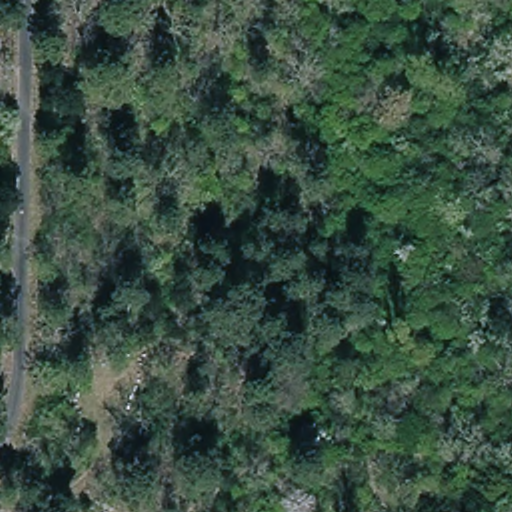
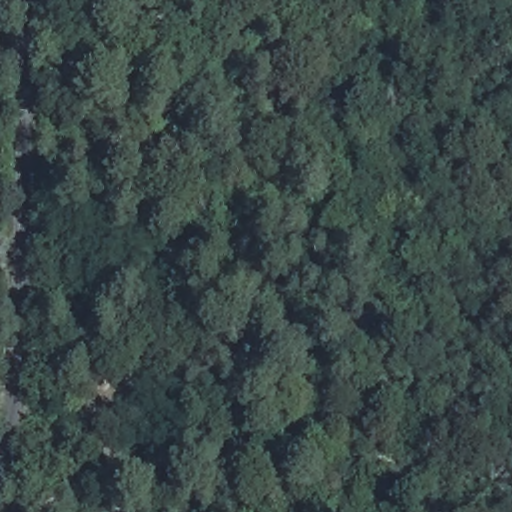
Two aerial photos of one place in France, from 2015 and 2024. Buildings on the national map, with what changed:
[]

